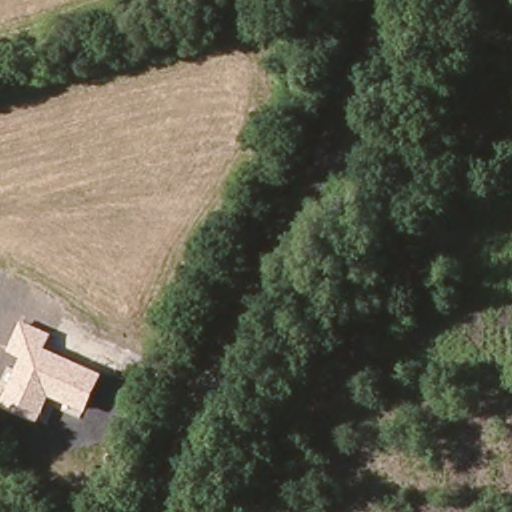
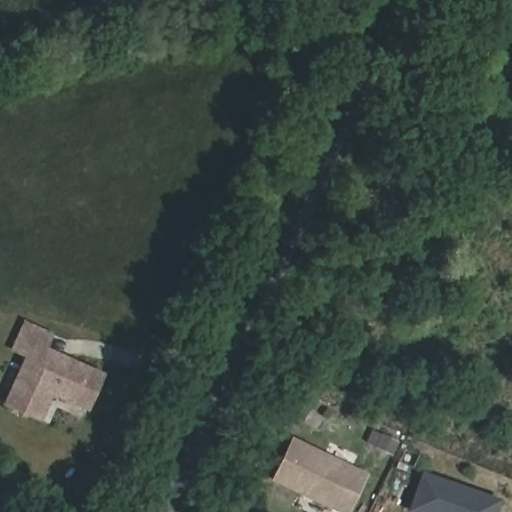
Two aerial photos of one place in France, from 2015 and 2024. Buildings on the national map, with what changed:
unchanged [(48,348),(105,373),(89,411),(53,396),(41,423),(3,405),(25,358),(11,350),(23,320),(53,333),(48,348)]
new [(272,478),(293,437),(369,473),(350,512),(339,512),(272,478)]
new [(422,472),(502,500),(498,512),(409,512),(408,511),(422,472)]

